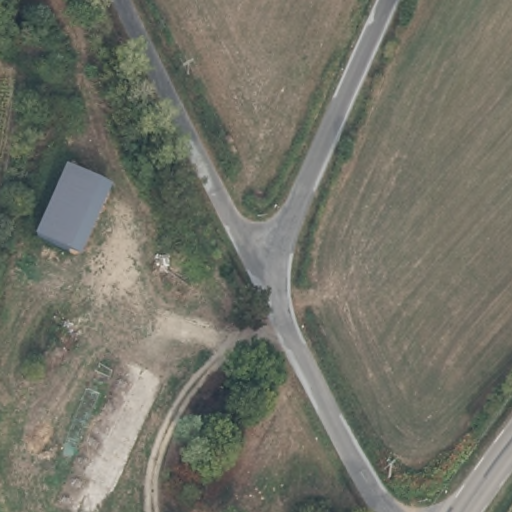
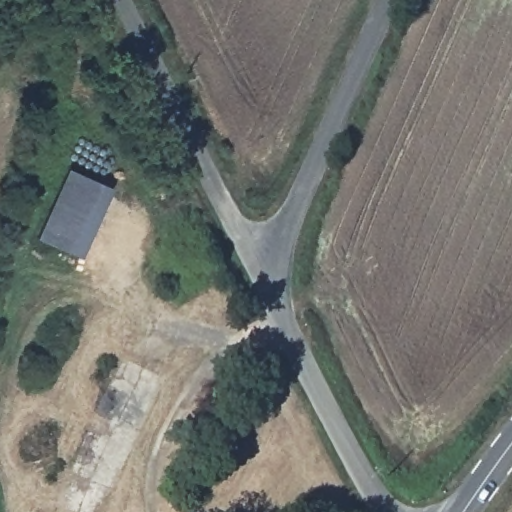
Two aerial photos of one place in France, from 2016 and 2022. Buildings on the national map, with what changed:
unchanged [(45,233),(73,163),(106,175),(78,246),(45,233)]

